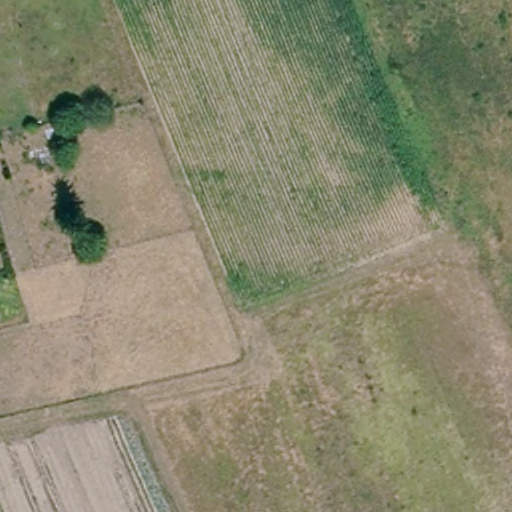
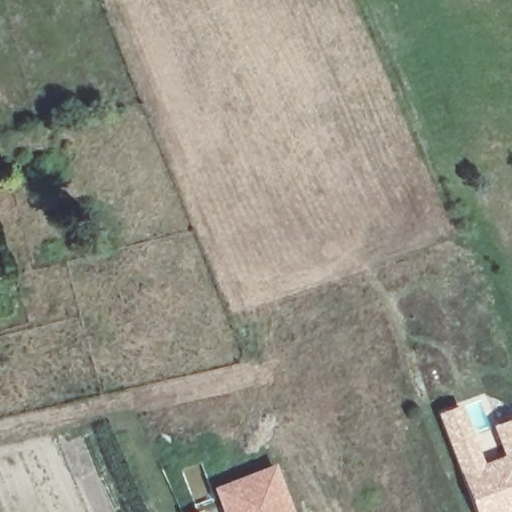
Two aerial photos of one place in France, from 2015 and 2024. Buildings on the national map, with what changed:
new [(485,460),(502,453),(492,425),(512,417),(512,512),(475,512),(437,413),(462,403),(485,460)]
new [(296,512),(222,512),(212,486),(277,462),(296,512)]
new [(204,512),(194,512),(203,508),(204,512)]

